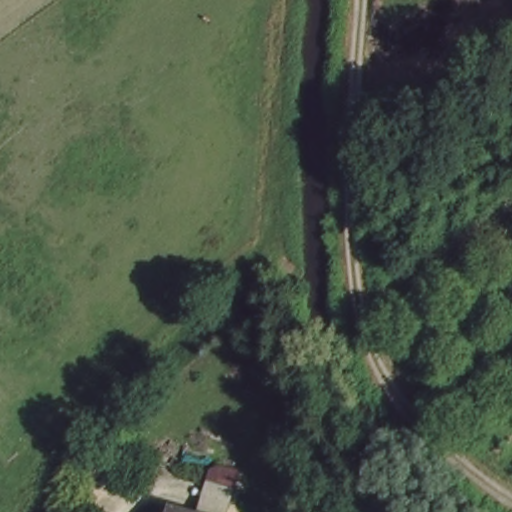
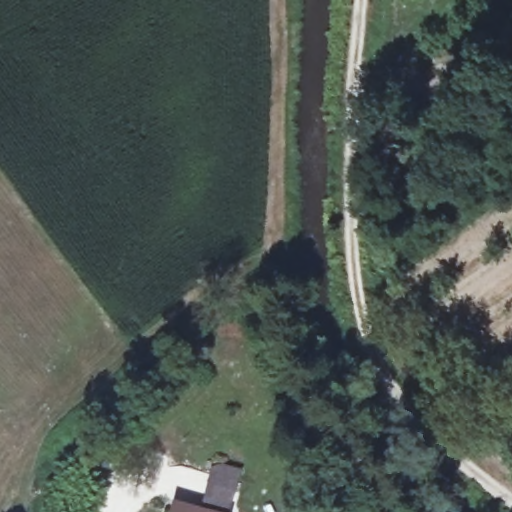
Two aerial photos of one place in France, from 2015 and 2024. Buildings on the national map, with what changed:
unchanged [(180,512),(163,512),(165,508),(180,512)]

